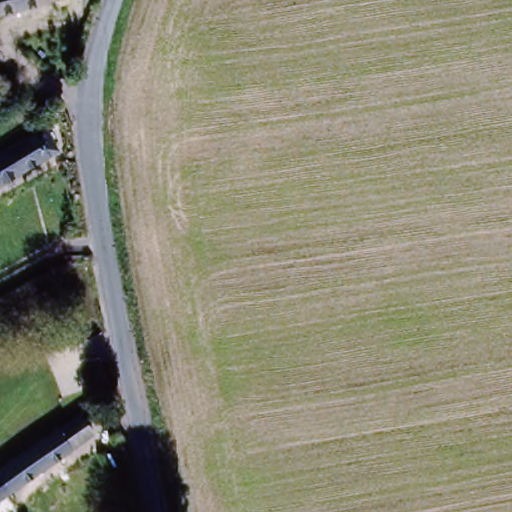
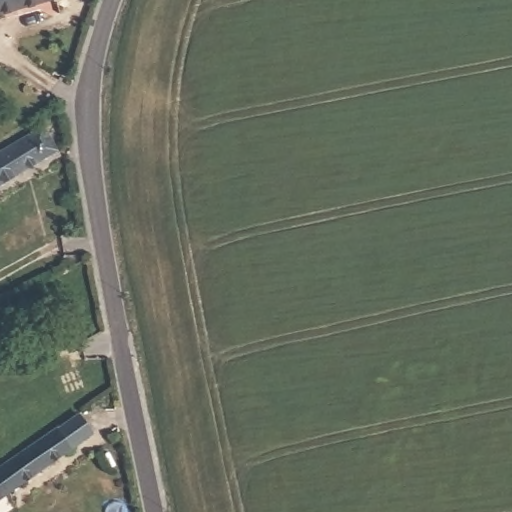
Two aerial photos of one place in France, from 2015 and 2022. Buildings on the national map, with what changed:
unchanged [(47,7),(0,18),(0,0),(45,0),(47,7)]
unchanged [(46,123),(62,147),(0,187),(0,153),(46,123)]
unchanged [(3,468),(78,415),(92,435),(16,488),(3,468)]
unchanged [(3,468),(16,488),(0,500),(0,470),(3,468)]

